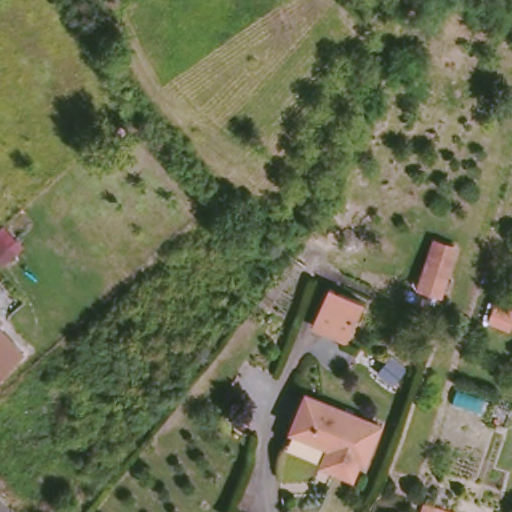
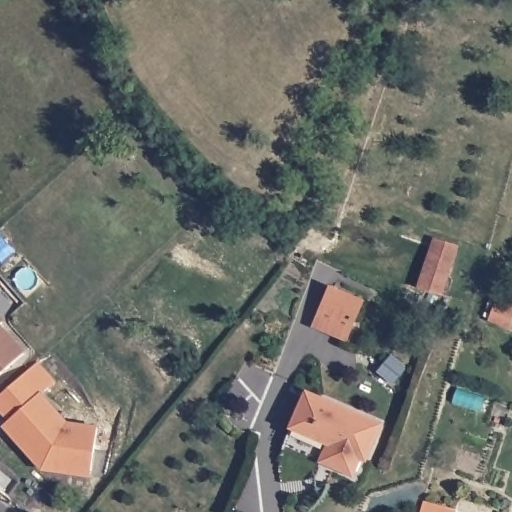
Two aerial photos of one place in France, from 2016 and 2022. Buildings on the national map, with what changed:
unchanged [(410,288),(432,236),(459,247),(442,295),(410,288)]
unchanged [(367,301),(350,346),(315,333),(331,289),(367,301)]
unchanged [(0,322),(0,316),(3,319),(0,322)]
unchanged [(0,372),(0,324),(24,351),(0,372)]
new [(0,410),(0,398),(39,362),(56,382),(42,395),(67,422),(97,426),(90,478),(42,471),(3,427),(10,421),(0,410)]
unchanged [(319,434),(290,425),(302,391),(331,402),(319,434)]
unchanged [(375,418),(365,450),(359,448),(354,464),(329,455),(334,439),(319,434),(331,402),(375,418)]

